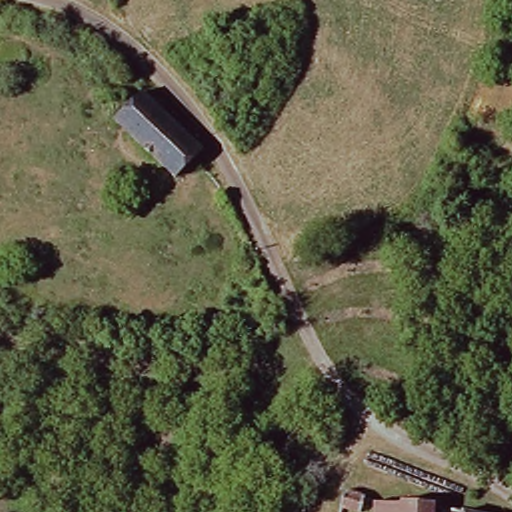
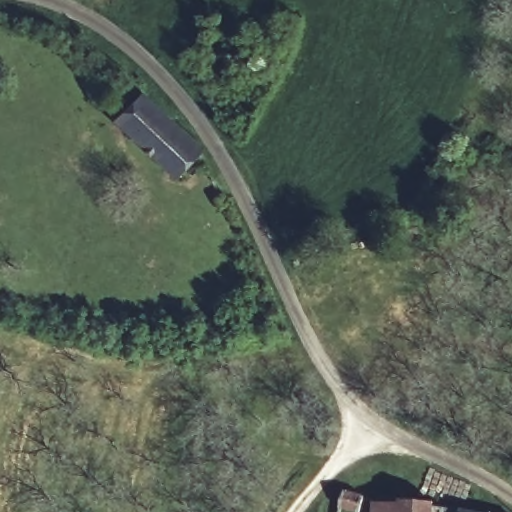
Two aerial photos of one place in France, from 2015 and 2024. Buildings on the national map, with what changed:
unchanged [(171,180),(112,121),(140,94),(201,152),(171,180)]
unchanged [(362,498),(359,512),(339,512),(342,494),(362,498)]
unchanged [(399,510),(400,502),(432,507),(431,512),(372,512),(373,507),(399,510)]

